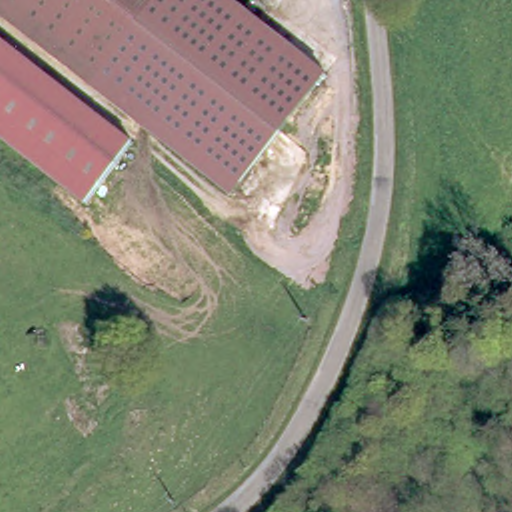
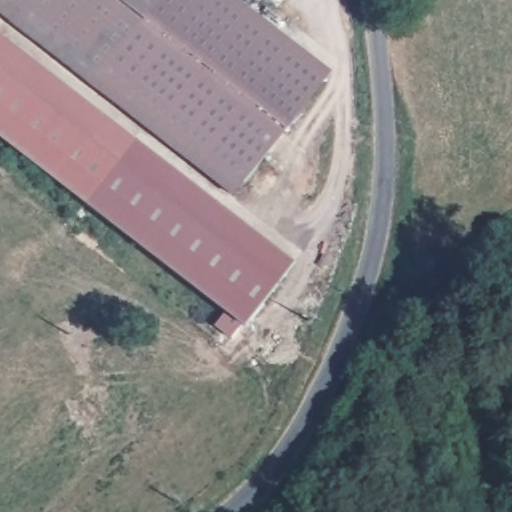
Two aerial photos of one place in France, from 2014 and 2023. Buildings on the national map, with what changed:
unchanged [(175,56),(138,32),(89,88),(0,19),(0,0),(219,0),(175,56)]
unchanged [(328,72),(231,195),(89,88),(138,32),(175,56),(219,0),(234,0),(328,72)]
unchanged [(131,142),(83,202),(0,135),(0,36),(131,142)]
new [(292,263),(243,327),(83,202),(131,142),(292,263)]

